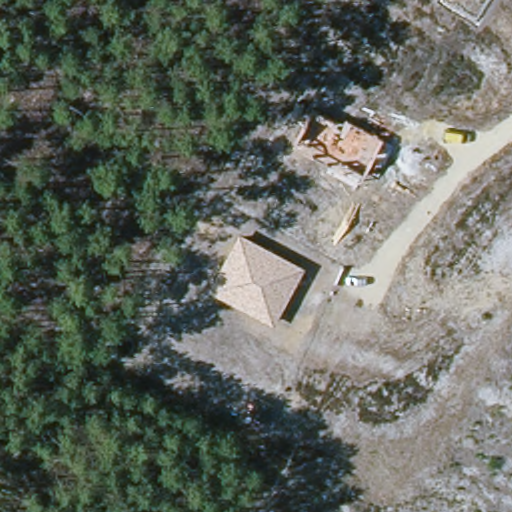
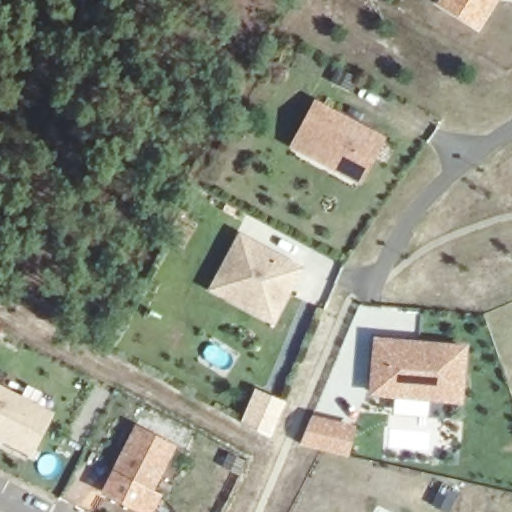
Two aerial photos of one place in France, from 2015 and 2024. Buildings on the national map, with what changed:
new [(437,4),(440,0),(497,0),(480,27),(437,4)]
new [(388,136),(361,184),(290,145),(315,96),(388,136)]
unchanged [(304,266),(275,324),(207,292),(238,234),(304,266)]
new [(470,343),(465,403),(370,395),(375,335),(470,343)]
new [(33,457),(0,442),(0,386),(54,413),(33,457)]
new [(350,456),(349,456),(303,444),(312,413),(356,425),(350,456)]
new [(177,445),(154,492),(159,495),(149,512),(105,491),(114,475),(109,472),(135,423),(177,445)]

